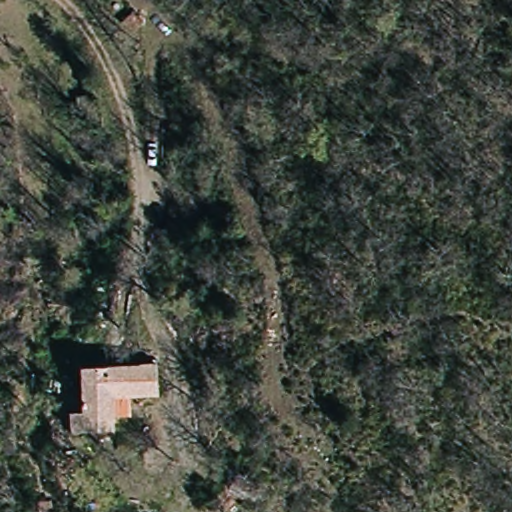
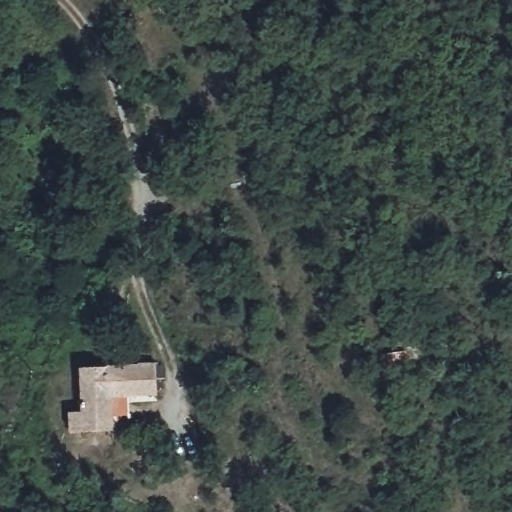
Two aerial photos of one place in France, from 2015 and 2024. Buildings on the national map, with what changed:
unchanged [(72,412),(82,416),(80,367),(161,362),(161,394),(133,398),(133,416),(114,419),(113,434),(72,433),(72,412)]

